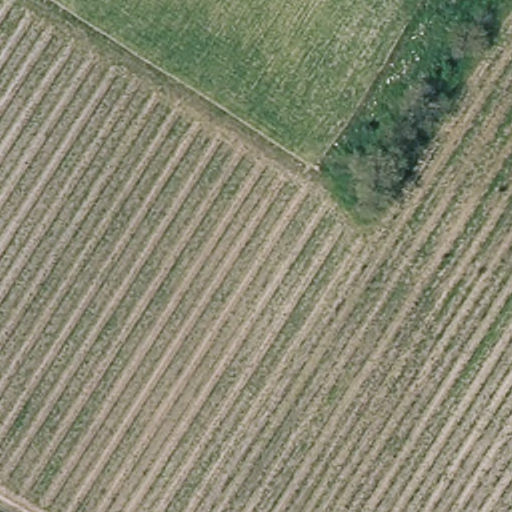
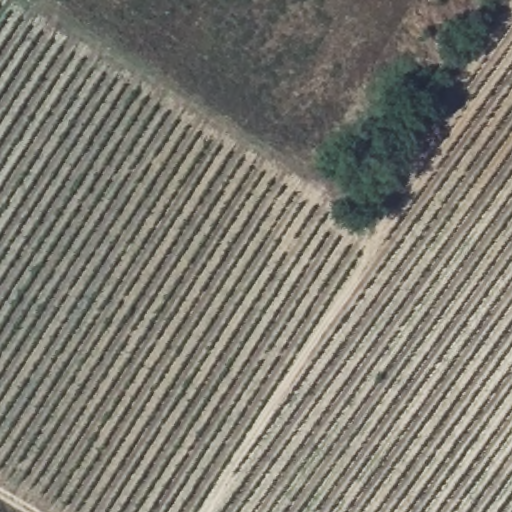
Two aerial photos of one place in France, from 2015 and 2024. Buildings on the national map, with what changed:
[]

